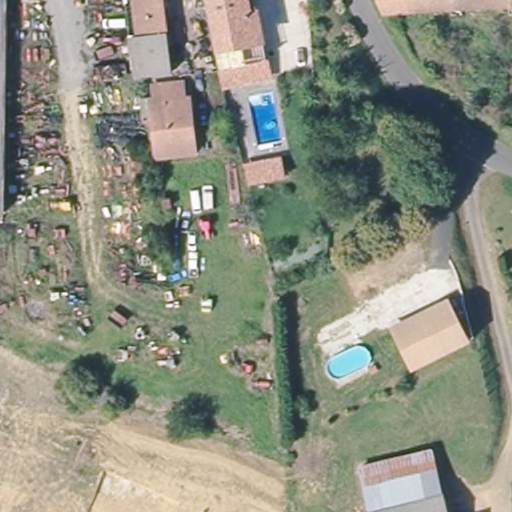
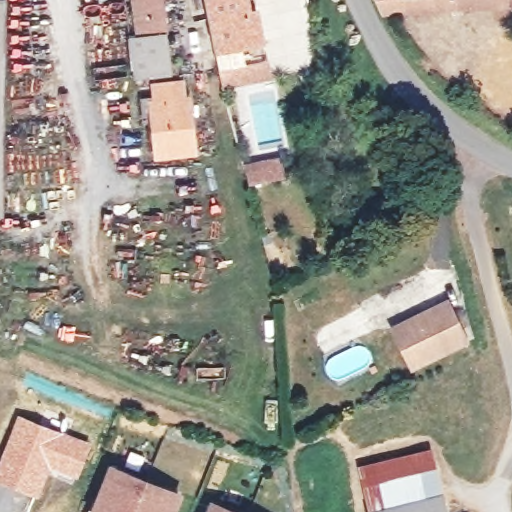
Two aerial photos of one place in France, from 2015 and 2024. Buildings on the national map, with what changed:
unchanged [(140,73),(126,0),(161,0),(173,69),(140,73)]
unchanged [(203,0),(254,0),(272,71),(224,83),(203,0)]
unchanged [(412,0),(412,4),(459,3),(460,16),(393,18),(385,0),(412,0)]
unchanged [(459,0),(511,0),(511,14),(460,16),(459,3),(459,0)]
unchanged [(511,0),(512,0),(512,14),(511,14),(511,0)]
unchanged [(6,124),(0,123),(0,6),(6,124)]
unchanged [(161,153),(151,107),(160,105),(158,88),(179,84),(181,99),(193,96),(203,144),(161,153)]
unchanged [(0,203),(0,123),(6,124),(12,203),(4,203),(0,203)]
unchanged [(284,178),(256,184),(252,169),(280,162),(284,178)]
unchanged [(465,341),(413,369),(393,330),(446,302),(465,341)]
new [(92,443),(79,477),(50,467),(39,497),(0,482),(0,460),(18,416),(92,443)]
unchanged [(362,459),(431,446),(445,489),(371,507),(362,459)]
new [(116,469),(184,497),(178,512),(99,512),(116,469)]
unchanged [(371,507),(445,489),(450,512),(372,512),(371,507)]
new [(218,506),(233,512),(215,512),(218,506)]

